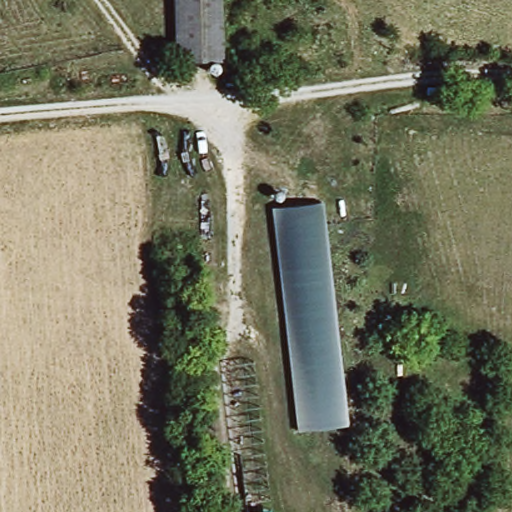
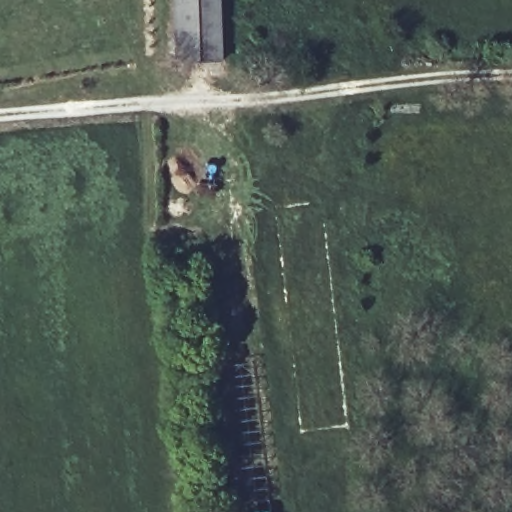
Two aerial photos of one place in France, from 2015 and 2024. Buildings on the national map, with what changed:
unchanged [(177,62),(177,35),(178,20),(178,0),(228,0),(228,17),(229,64),(191,62),(177,62)]
demolished [(297,425),(277,208),(324,203),(344,421),(297,425)]
unchanged [(273,512),(251,512),(273,510),(273,512)]

